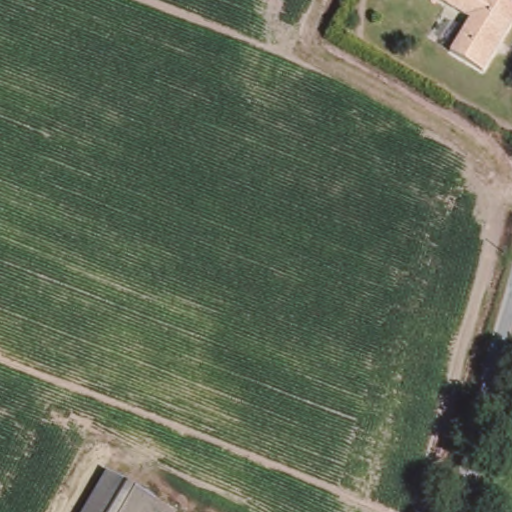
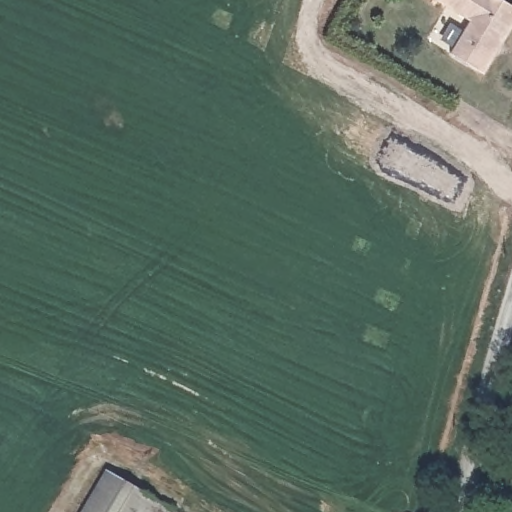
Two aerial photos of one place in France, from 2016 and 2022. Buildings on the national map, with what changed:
unchanged [(512,14),(512,27),(483,77),(447,57),(467,25),(426,0),(486,0),(512,14)]
unchanged [(146,512),(80,512),(101,475),(152,503),(146,512)]
unchanged [(167,512),(146,512),(152,503),(167,512)]

